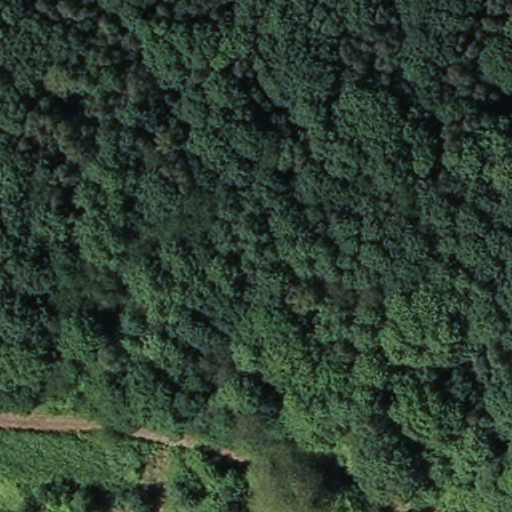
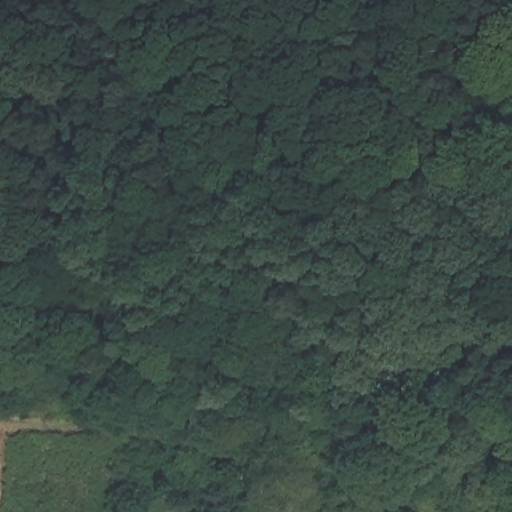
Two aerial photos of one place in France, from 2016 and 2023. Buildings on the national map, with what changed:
[]

